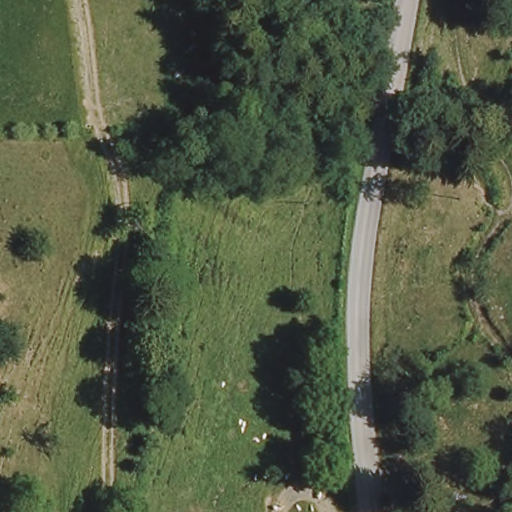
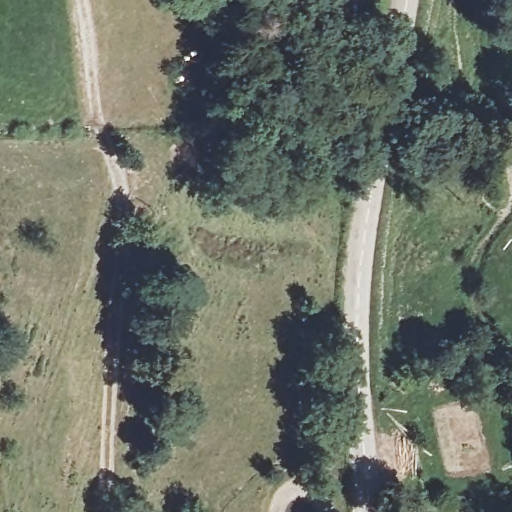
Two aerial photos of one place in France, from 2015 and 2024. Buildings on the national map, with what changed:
[]

